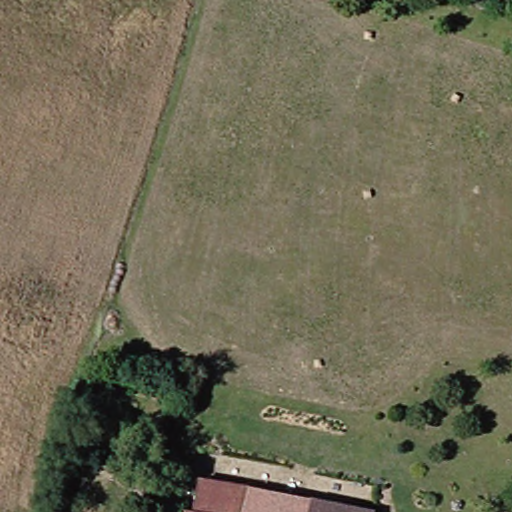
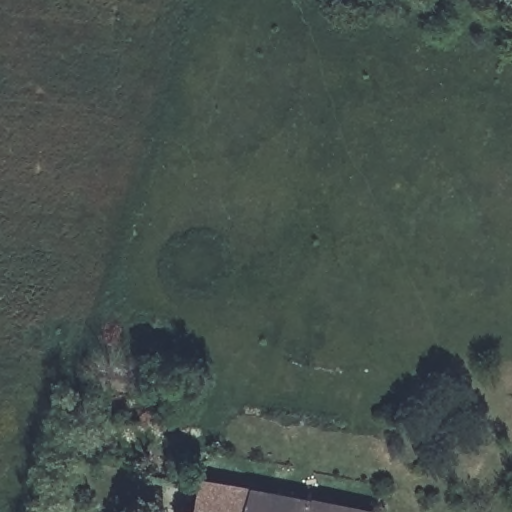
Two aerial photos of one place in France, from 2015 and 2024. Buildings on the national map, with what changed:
unchanged [(276,497),(284,472),(300,475),(294,500),(316,504),(323,477),(387,488),(382,512),(200,512),(209,481),(276,497)]

